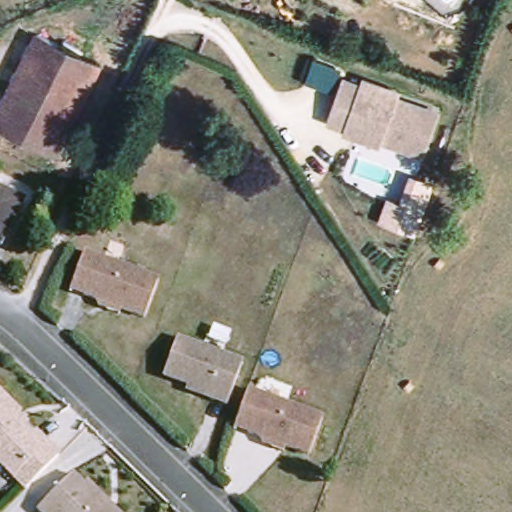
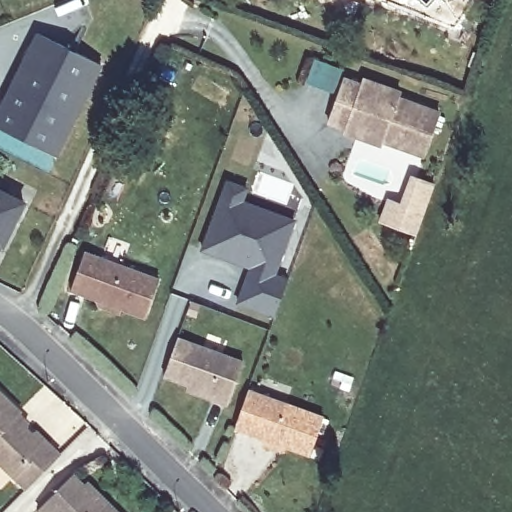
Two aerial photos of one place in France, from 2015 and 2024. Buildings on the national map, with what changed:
unchanged [(102,67),(57,157),(0,128),(0,113),(39,36),(102,67)]
unchanged [(346,134),(347,130),(329,123),(344,82),(361,87),(363,82),(400,96),(399,101),(440,116),(425,157),(382,142),(381,147),(346,134)]
new [(403,205),(414,177),(435,185),(425,212),(417,231),(382,219),(389,200),(403,205)]
new [(203,250),(229,182),(247,189),(242,202),(277,214),(295,221),(275,275),(289,280),(275,316),(239,302),(252,267),(230,260),(222,257),(203,250)]
unchanged [(25,204),(3,249),(0,247),(0,192),(25,204)]
unchanged [(102,312),(99,305),(73,296),(87,258),(162,286),(148,323),(125,315),(122,319),(102,312)]
unchanged [(190,386),(167,377),(180,341),(245,365),(237,387),(230,406),(214,400),(189,391),(190,386)]
unchanged [(266,447),(263,440),(237,430),(250,392),(325,421),(312,458),(288,449),(287,454),(266,447)]
unchanged [(0,463),(0,396),(1,395),(25,418),(24,420),(52,448),(65,462),(32,495),(19,482),(2,465),(0,463)]
unchanged [(74,475),(85,486),(87,483),(110,506),(115,511),(117,512),(41,512),(39,511),(74,475)]

